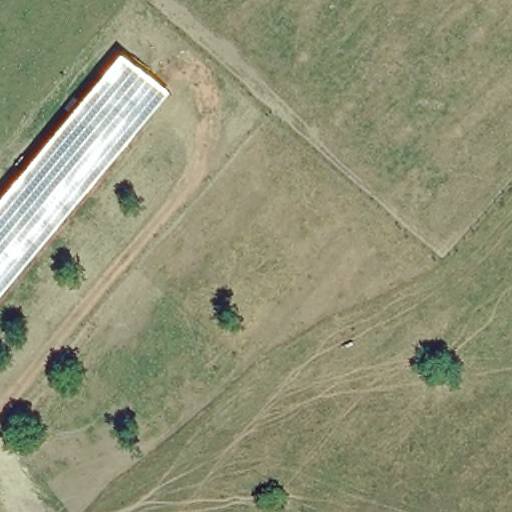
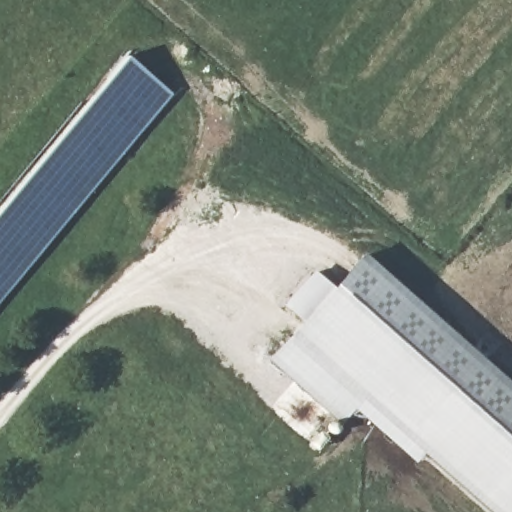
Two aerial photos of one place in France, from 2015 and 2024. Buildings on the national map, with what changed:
unchanged [(170,94),(0,297),(0,209),(127,57),(170,94)]
new [(512,379),(512,512),(494,512),(367,399),(342,425),(270,358),(366,250),(512,379)]

